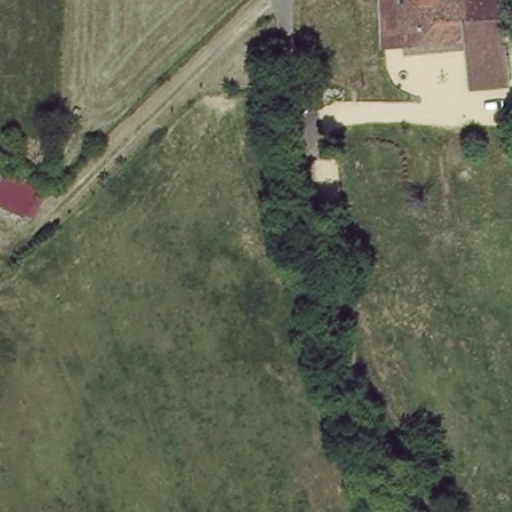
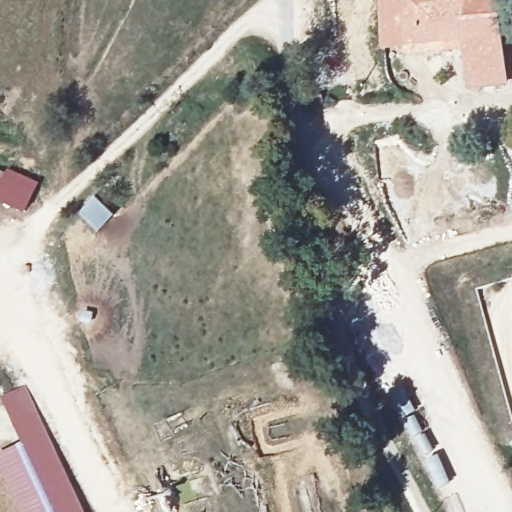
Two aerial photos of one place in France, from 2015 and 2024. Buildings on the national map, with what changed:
unchanged [(403,38),(388,39),(384,0),(498,0),(506,77),(473,80),(470,43),(404,50),(403,38)]
new [(6,169),(38,184),(26,213),(0,201),(0,170),(5,173),(6,169)]
new [(2,398),(25,387),(85,512),(22,512),(0,465),(0,455),(23,444),(2,398)]

